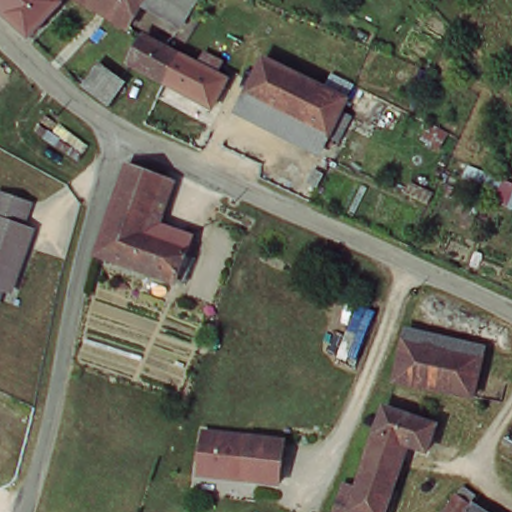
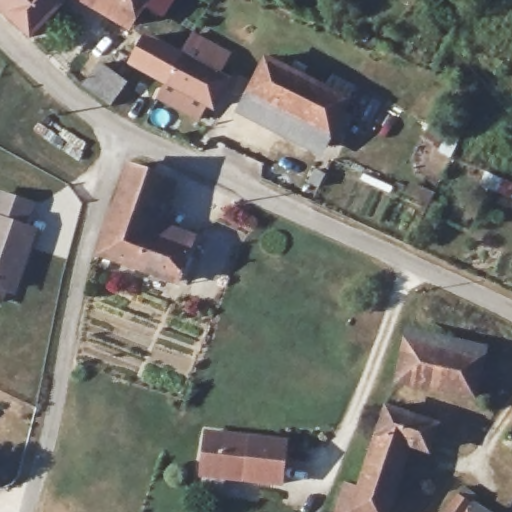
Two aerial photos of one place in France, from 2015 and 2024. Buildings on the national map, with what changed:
unchanged [(0,9),(0,0),(59,0),(32,35),(0,9)]
unchanged [(179,33),(148,8),(129,26),(99,0),(205,0),(207,2),(179,33)]
unchanged [(215,100),(172,78),(139,60),(152,37),(184,55),(227,78),(215,100)]
unchanged [(351,141),(335,134),(331,141),(243,105),(268,51),(354,90),(345,109),(362,116),(351,141)]
unchanged [(85,89),(105,62),(138,85),(118,112),(85,89)]
unchanged [(132,165),(137,161),(172,175),(160,214),(120,199),(132,165)]
unchanged [(21,260),(10,287),(0,284),(0,201),(5,190),(37,203),(27,225),(40,230),(26,262),(21,260)]
unchanged [(160,214),(158,219),(199,233),(183,280),(103,250),(120,199),(160,214)]
unchanged [(413,331),(488,346),(480,384),(406,368),(413,331)]
unchanged [(388,410),(440,426),(432,453),(410,447),(391,512),(358,512),(366,484),(388,410)]
unchanged [(200,470),(203,433),(284,441),(279,483),(245,480),(200,475),(200,470)]
unchanged [(508,435),(512,437),(512,449),(502,443),(508,435)]
unchanged [(352,480),(366,484),(358,512),(341,512),(352,480)]
unchanged [(470,498),(483,507),(480,512),(461,512),(470,498)]

